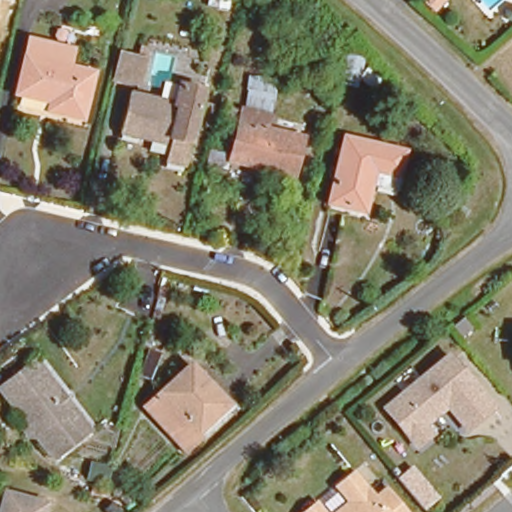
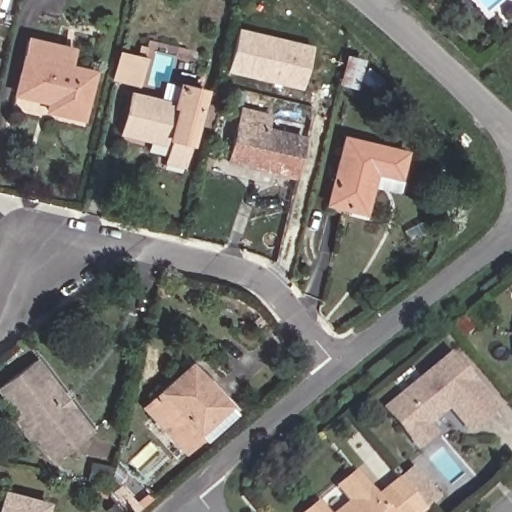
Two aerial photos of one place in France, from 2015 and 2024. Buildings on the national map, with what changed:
unchanged [(431,19),(421,7),(429,0),(435,0),(442,9),(431,19)]
new [(225,70),(235,30),(308,47),(299,87),(225,70)]
unchanged [(53,66),(62,68),(87,74),(76,117),(41,109),(42,103),(11,96),(24,41),(57,49),(53,66)]
unchanged [(146,65),(138,89),(104,80),(110,57),(146,65)]
unchanged [(181,167),(159,162),(163,146),(116,135),(125,95),(169,104),(173,87),(199,92),(181,167)]
unchanged [(243,111),(286,122),(282,136),(300,140),(290,177),(229,162),(243,111)]
unchanged [(365,186),(361,208),(324,202),(337,140),(396,152),(392,175),(390,190),(365,186)]
unchanged [(407,435),(383,406),(447,352),(491,406),(466,427),(442,400),(438,403),(438,409),(423,422),(431,431),(415,444),(407,435)]
unchanged [(134,397),(186,353),(221,395),(186,425),(193,433),(177,447),(134,397)]
unchanged [(10,420),(11,412),(0,398),(0,385),(11,376),(30,361),(55,392),(55,396),(63,406),(67,406),(87,431),(51,460),(33,438),(25,437),(24,437),(10,420)]
unchanged [(426,512),(425,512),(397,477),(415,463),(441,500),(426,512)]
unchanged [(346,512),(347,502),(334,487),(352,472),(373,497),(384,487),(405,512),(346,512)]
new [(0,498),(2,489),(49,502),(47,512),(0,512),(0,498)]
unchanged [(315,502),(323,512),(304,512),(315,502)]

